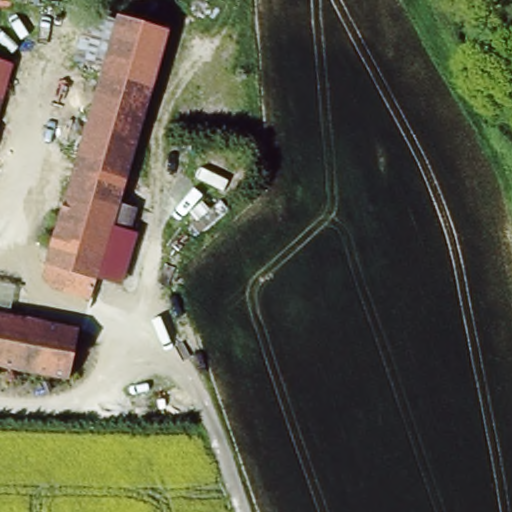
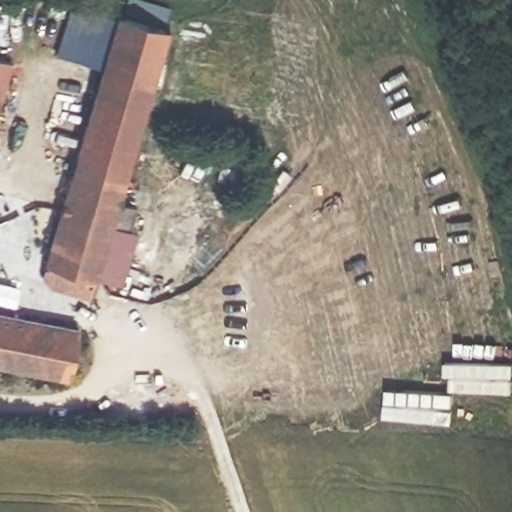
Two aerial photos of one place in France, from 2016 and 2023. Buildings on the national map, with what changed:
unchanged [(40,272),(96,61),(106,23),(159,35),(115,204),(133,210),(126,236),(109,234),(95,285),(40,272)]
unchanged [(67,387),(0,372),(0,312),(80,330),(67,387)]

